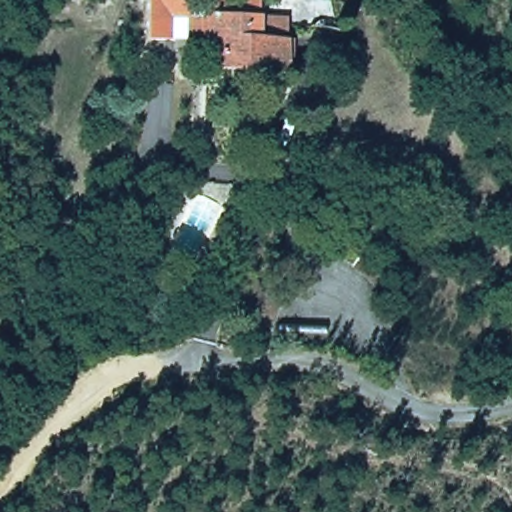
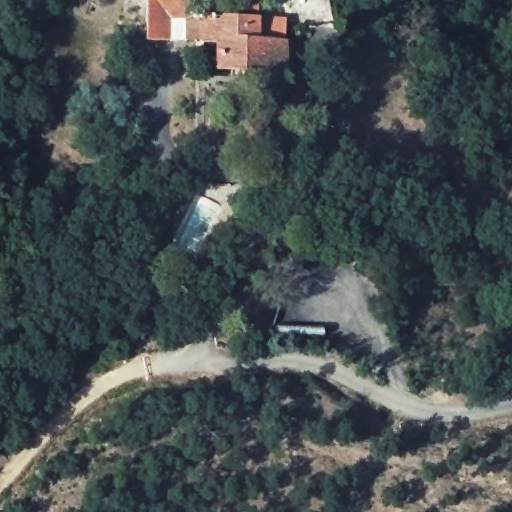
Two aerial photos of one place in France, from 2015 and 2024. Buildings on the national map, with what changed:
unchanged [(218,74),(218,64),(205,63),(206,41),(148,38),(150,0),(194,0),(193,22),(207,23),(208,8),(220,8),(220,0),(268,0),(267,19),(288,19),(285,77),(218,74)]
unchanged [(139,278),(120,260),(145,232),(165,245),(139,278)]

